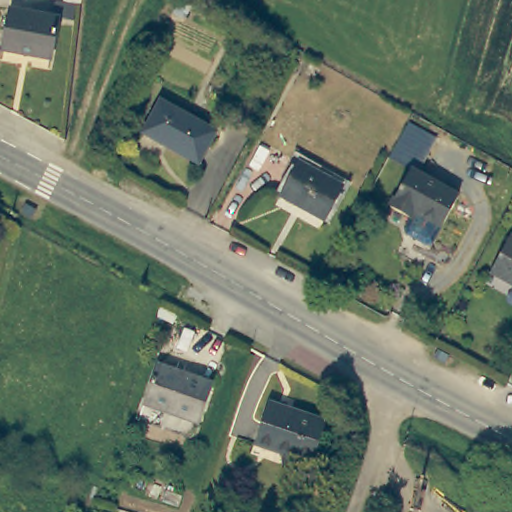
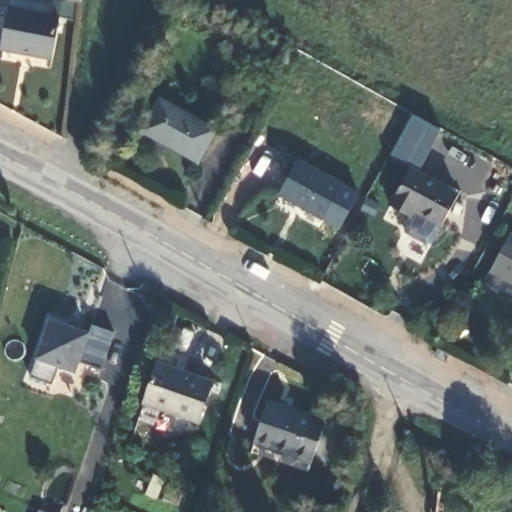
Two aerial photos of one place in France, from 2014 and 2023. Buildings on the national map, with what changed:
unchanged [(64,0),(81,0),(81,2),(64,1),(64,0)]
unchanged [(51,60),(1,50),(9,7),(59,17),(51,60)]
unchanged [(198,157),(142,127),(160,94),(216,125),(198,157)]
unchanged [(409,216),(389,205),(410,168),(389,157),(408,122),(435,137),(416,172),(457,195),(432,242),(426,244),(405,232),(403,227),(409,216)]
unchanged [(341,181),(323,213),(280,190),(297,157),(341,181)]
unchanged [(512,236),(512,283),(490,271),(510,235),(512,236)]
new [(35,359),(49,320),(91,333),(92,326),(116,334),(102,371),(81,362),(77,375),(60,368),(52,385),(31,377),(35,359)]
unchanged [(212,382),(198,422),(144,403),(157,363),(212,382)]
unchanged [(312,462),(254,443),(267,401),(325,420),(312,462)]

